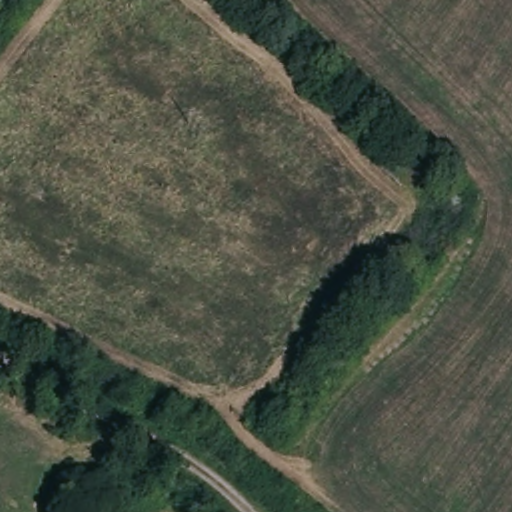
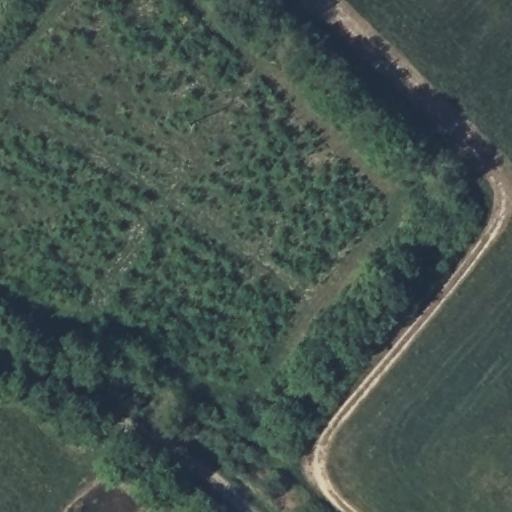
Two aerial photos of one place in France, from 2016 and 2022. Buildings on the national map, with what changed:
[]

